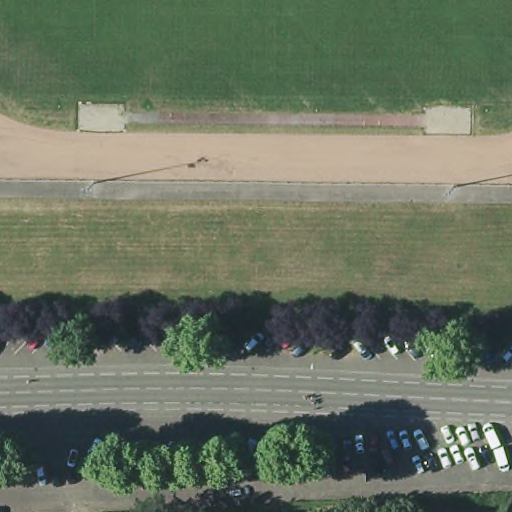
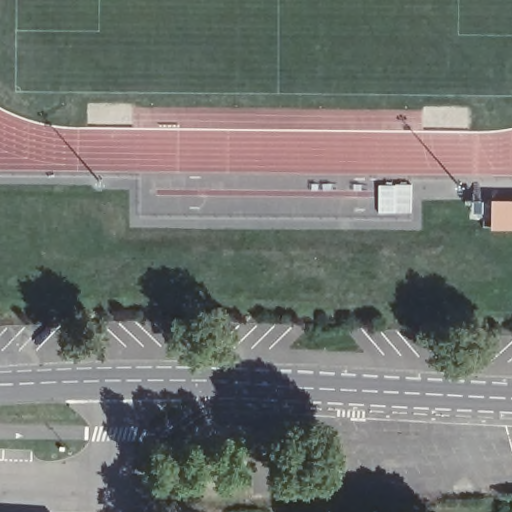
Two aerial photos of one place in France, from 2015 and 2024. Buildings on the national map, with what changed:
new [(512,205),(512,226),(490,226),(491,205),(512,205)]

